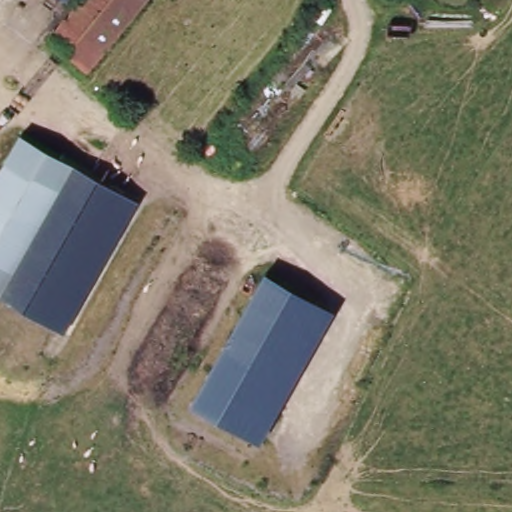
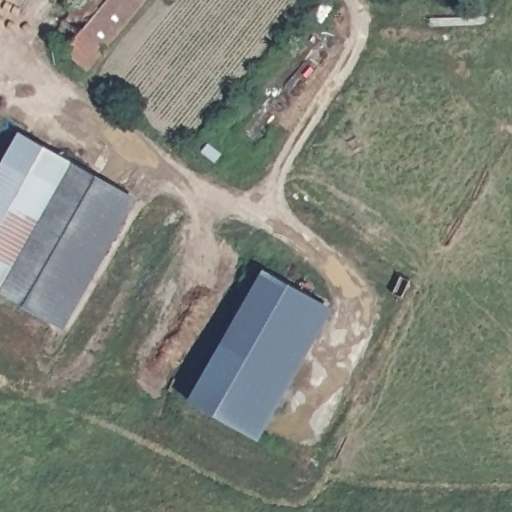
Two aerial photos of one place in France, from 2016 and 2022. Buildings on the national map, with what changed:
unchanged [(58,29),(82,0),(108,0),(66,52),(53,41),(58,29)]
unchanged [(87,71),(66,52),(108,0),(144,0),(87,71)]
unchanged [(0,288),(0,174),(25,130),(141,199),(69,327),(0,288)]
unchanged [(335,312),(261,442),(190,404),(266,273),(335,312)]

